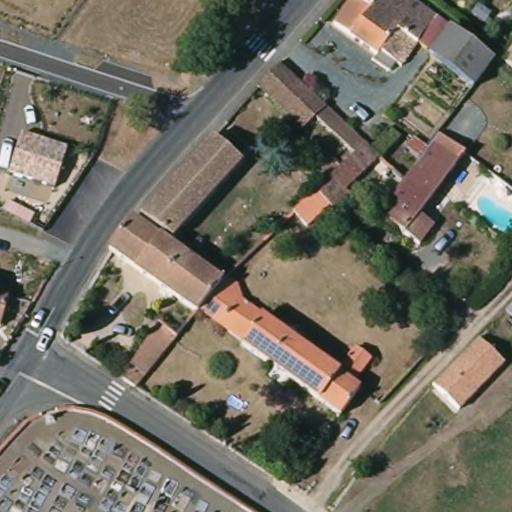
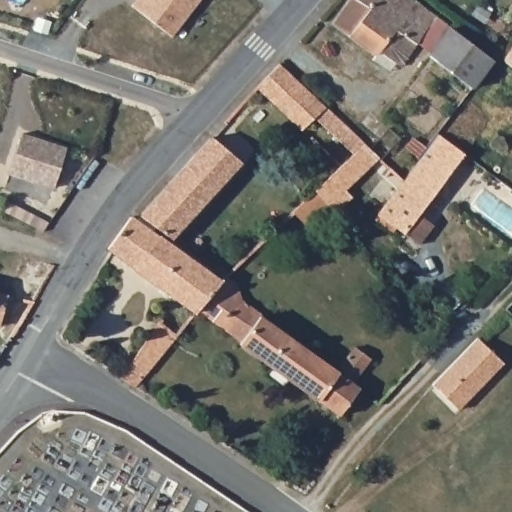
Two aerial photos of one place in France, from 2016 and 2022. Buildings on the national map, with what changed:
new [(206,0),(174,39),(135,7),(141,0),(206,0)]
unchanged [(401,68),(395,64),(389,72),(372,60),(376,55),(333,23),(351,0),(419,0),(439,15),(401,68)]
unchanged [(495,56),(474,85),(426,50),(447,21),(495,56)]
unchanged [(503,61),(512,48),(512,68),(503,61)]
unchanged [(279,64),(360,144),(352,151),(309,113),(298,123),(253,83),(275,60),(279,64)]
unchanged [(421,242),(406,229),(397,220),(394,224),(378,212),(382,209),(381,208),(403,178),(426,149),(439,130),(465,149),(419,213),(434,227),(421,242)]
unchanged [(68,146),(55,189),(6,174),(21,131),(68,146)]
unchanged [(204,144),(236,170),(167,248),(134,224),(204,144)]
unchanged [(352,151),(360,144),(375,158),(340,188),(345,194),(328,209),(321,203),(303,219),(289,207),(307,192),(352,151)]
unchanged [(215,285),(195,315),(193,318),(106,257),(104,255),(125,224),(215,285)]
unchanged [(216,282),(221,279),(231,286),(225,294),(255,314),(252,319),(331,376),(360,338),(372,346),(365,363),(348,387),(356,394),(336,421),(284,385),(277,395),(260,383),(266,371),(238,351),(240,348),(195,315),(215,285),(216,282)]
unchanged [(1,327),(0,327),(0,297),(11,300),(1,327)]
unchanged [(171,309),(191,323),(138,389),(123,380),(171,309)]
unchanged [(441,378),(462,357),(480,338),(506,363),(461,409),(435,384),(441,378)]

